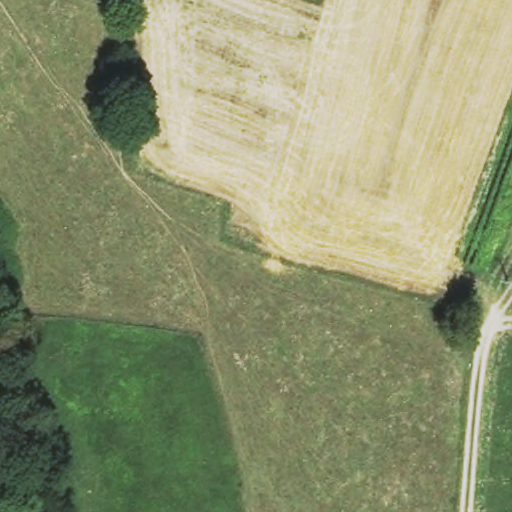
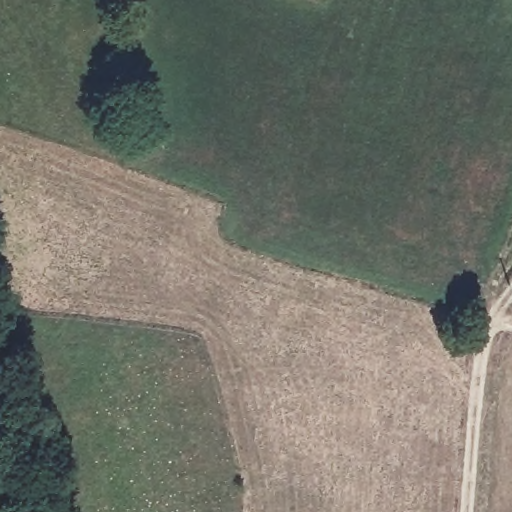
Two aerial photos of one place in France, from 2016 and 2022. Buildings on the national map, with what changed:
[]

